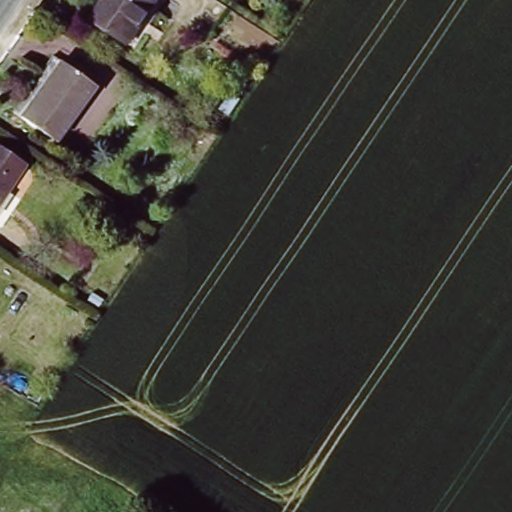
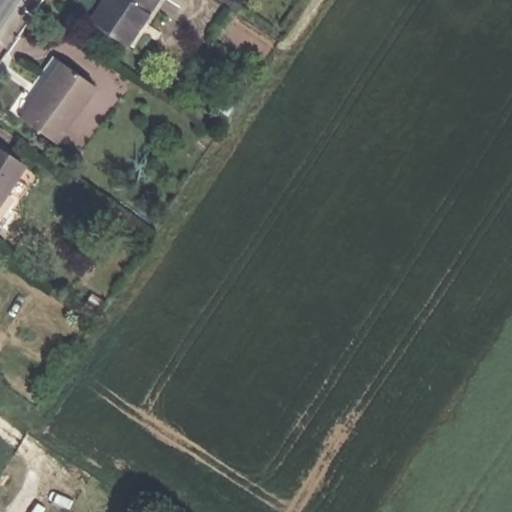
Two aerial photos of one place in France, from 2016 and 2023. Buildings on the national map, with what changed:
unchanged [(164,0),(132,44),(120,36),(87,12),(96,0),(164,0)]
unchanged [(57,63),(68,70),(103,93),(65,148),(20,116),(57,63)]
unchanged [(1,228),(0,227),(0,153),(35,177),(1,228)]

